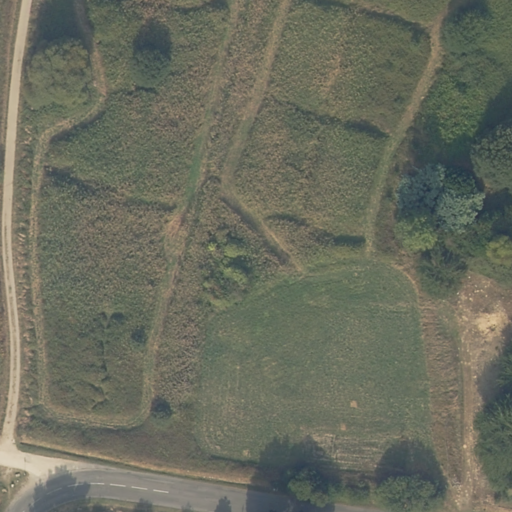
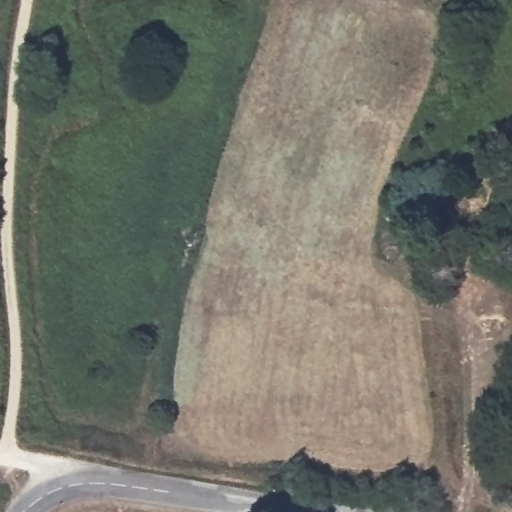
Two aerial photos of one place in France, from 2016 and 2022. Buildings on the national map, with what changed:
unchanged [(450,169),(445,181),(430,176),(436,164),(450,169)]

